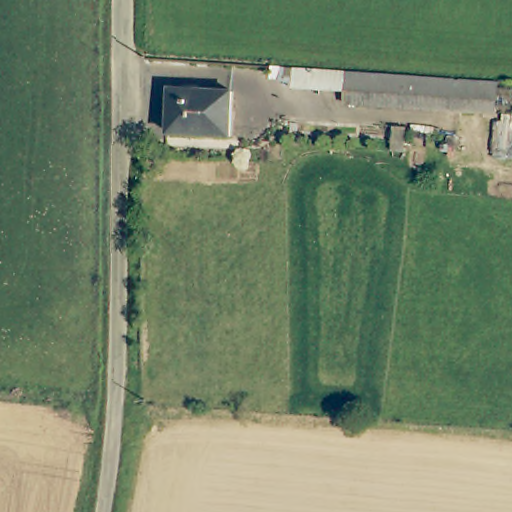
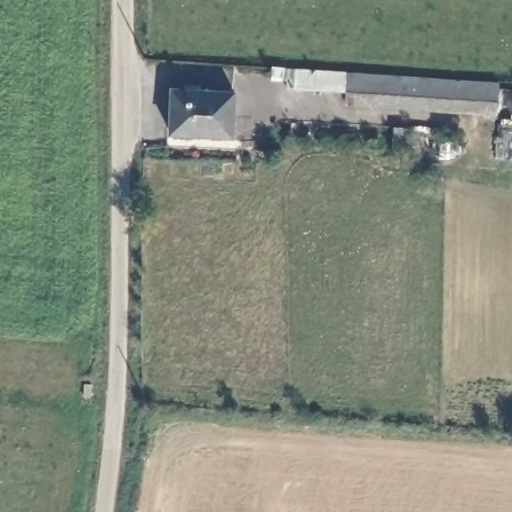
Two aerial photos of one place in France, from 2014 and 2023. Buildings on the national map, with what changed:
unchanged [(497,84),(496,114),(354,104),(355,90),(295,85),(296,80),(282,80),(282,69),(497,84)]
unchanged [(172,89),(235,91),(232,136),(171,133),(172,89)]

